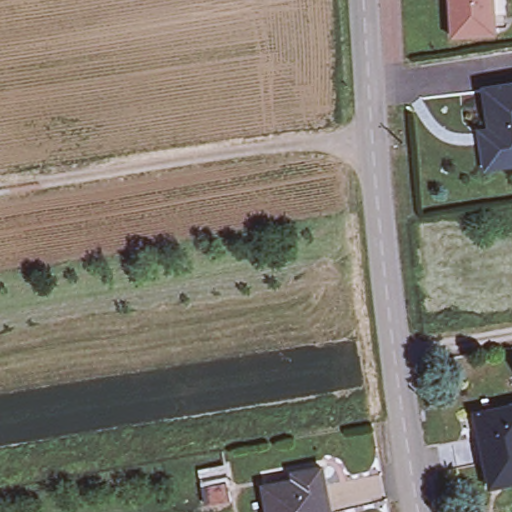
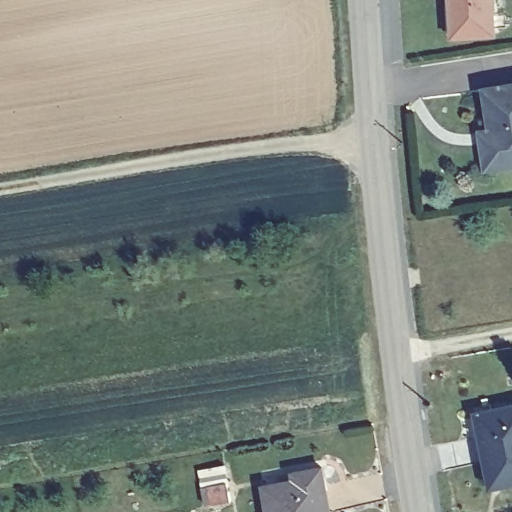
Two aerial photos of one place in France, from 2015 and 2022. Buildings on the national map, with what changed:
unchanged [(495,28),(455,31),(452,0),(492,0),(495,28)]
unchanged [(512,164),(472,170),(468,145),(478,143),(470,92),(512,86),(512,164)]
unchanged [(480,430),(476,430),(471,406),(512,397),(512,473),(490,478),(480,430)]
unchanged [(263,482),(294,476),(293,470),(322,465),(323,473),(326,487),(318,488),(323,512),(269,512),(264,485),(263,482)]

